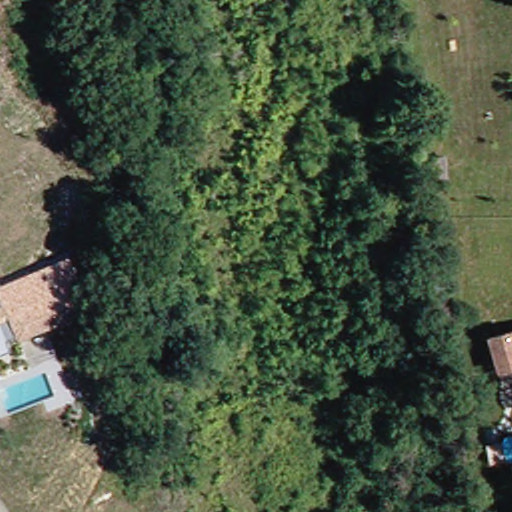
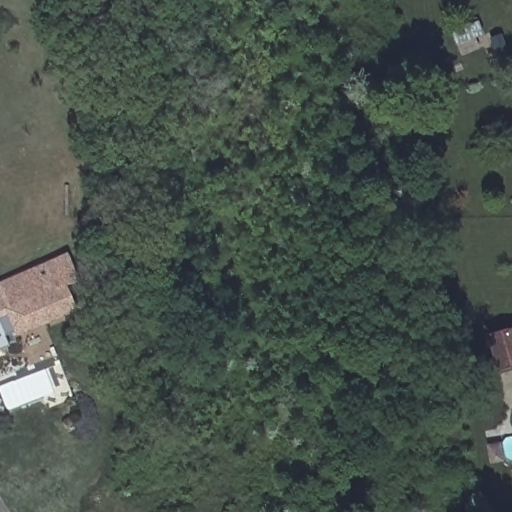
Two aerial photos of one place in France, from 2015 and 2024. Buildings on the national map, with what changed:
unchanged [(94,265),(100,287),(85,291),(91,314),(31,331),(30,327),(19,330),(21,341),(0,348),(0,315),(13,311),(10,298),(9,294),(0,296),(0,266),(5,283),(92,259),(94,265)]
unchanged [(512,367),(497,370),(486,336),(512,329),(512,367)]

